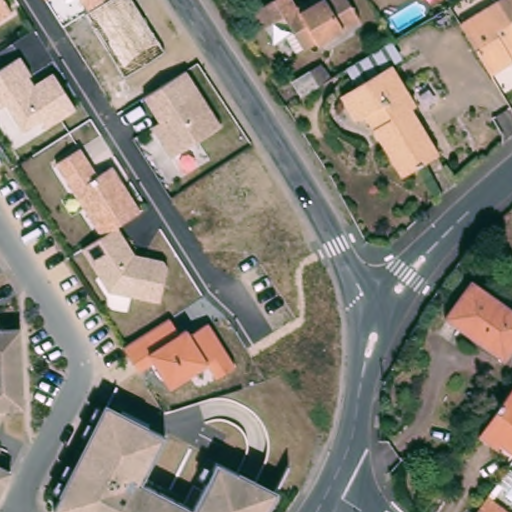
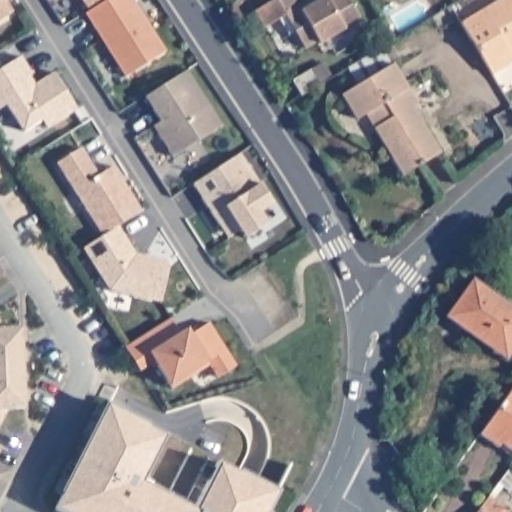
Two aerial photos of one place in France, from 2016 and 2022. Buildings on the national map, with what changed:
unchanged [(0,21),(0,0),(7,0),(14,13),(0,21)]
unchanged [(133,0),(164,52),(124,78),(84,14),(87,12),(106,0),(133,0)]
unchanged [(323,40),(321,38),(308,45),(288,13),(267,25),(257,9),(271,0),(298,0),(301,4),(306,0),(354,0),(364,15),(323,40)]
unchanged [(498,0),(512,0),(512,50),(510,51),(512,55),(512,63),(492,74),(461,23),(498,0)]
unchanged [(417,109),(412,113),(439,158),(402,180),(366,119),(356,124),(341,100),(359,89),(348,73),(392,47),(402,64),(393,69),(412,100),(417,109)]
unchanged [(32,76),(30,79),(34,86),(55,74),(77,111),(45,129),(41,122),(21,134),(4,106),(0,109),(0,70),(21,57),(32,76)]
unchanged [(160,121),(144,96),(186,68),(223,126),(172,158),(151,126),(160,121)]
unchanged [(294,80),(311,70),(320,85),(302,96),(294,80)]
unchanged [(82,145),(100,174),(115,164),(143,214),(121,228),(135,253),(172,262),(161,303),(111,290),(81,247),(100,235),(54,163),(82,145)]
new [(220,223),(194,182),(226,162),(239,154),(246,166),(270,204),(259,210),(267,224),(245,238),(240,230),(233,234),(228,237),(220,223)]
unchanged [(512,306),(512,352),(507,358),(449,317),(476,279),(512,306)]
unchanged [(23,327),(25,367),(0,368),(0,318),(7,328),(23,327)]
unchanged [(122,348),(170,319),(179,334),(186,329),(189,334),(209,323),(235,367),(216,379),(207,366),(169,388),(154,363),(138,374),(122,348)]
unchanged [(27,407),(10,408),(0,426),(0,368),(25,367),(27,407)]
unchanged [(512,389),(512,454),(481,433),(512,389)]
unchanged [(107,404),(167,434),(143,481),(194,507),(217,461),(276,491),(264,512),(57,512),(52,509),(107,404)]
unchanged [(0,452),(0,444),(4,446),(0,452)]
unchanged [(0,497),(0,462),(15,469),(0,497)]
unchanged [(491,500),(508,512),(482,512),(491,500)]

